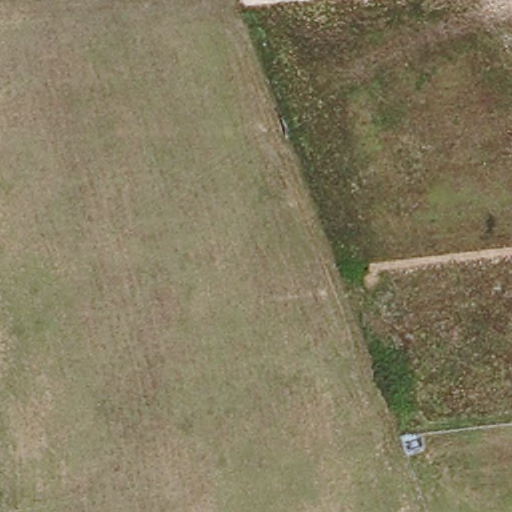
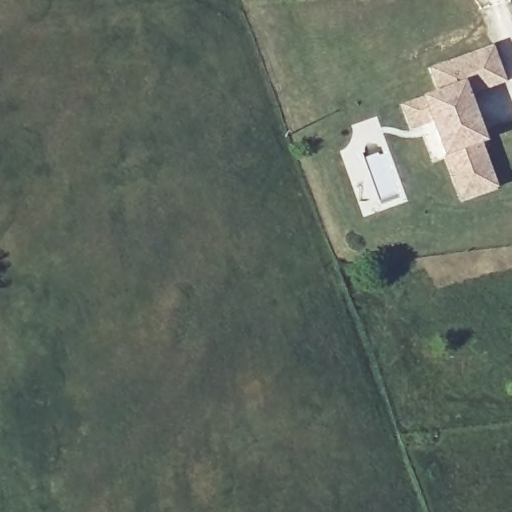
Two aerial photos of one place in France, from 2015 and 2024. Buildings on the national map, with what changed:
new [(506,82),(470,97),(486,145),(500,188),(460,202),(443,158),(430,122),(410,130),(401,105),(437,90),(429,68),(494,45),(506,82)]

